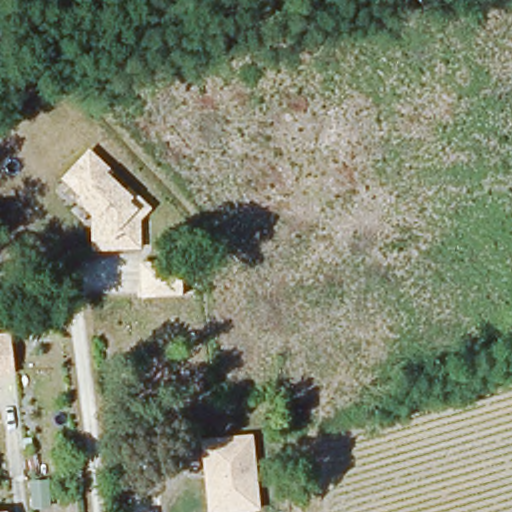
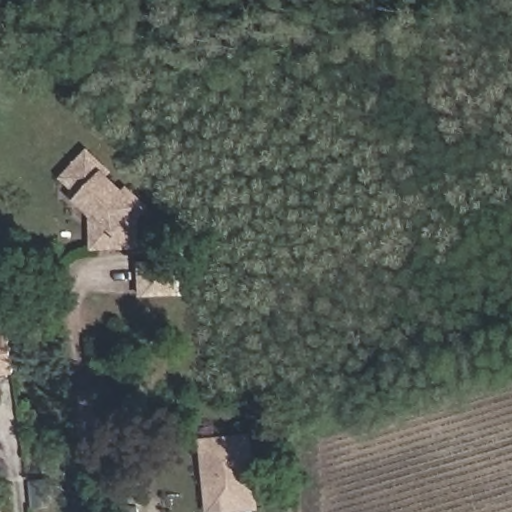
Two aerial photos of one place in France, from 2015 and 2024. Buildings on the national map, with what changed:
unchanged [(106,249),(94,249),(94,214),(80,201),(84,197),(65,180),(87,156),(88,155),(107,174),(104,177),(124,197),(127,192),(146,210),(138,219),(136,217),(136,249),(106,249)]
unchanged [(142,297),(140,262),(179,260),(181,296),(142,297)]
unchanged [(0,377),(0,335),(10,333),(17,375),(0,377)]
unchanged [(232,512),(208,512),(201,440),(252,433),(260,509),(232,512)]

